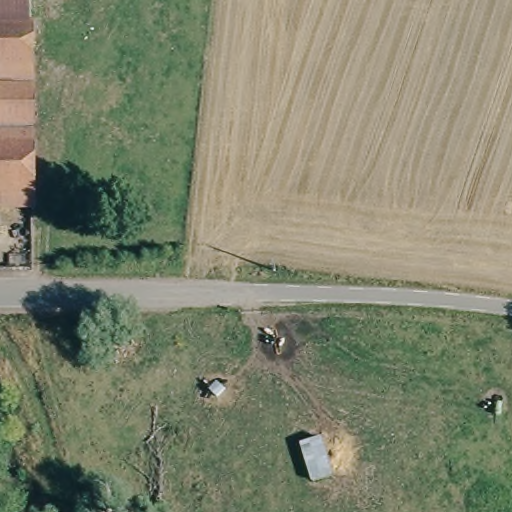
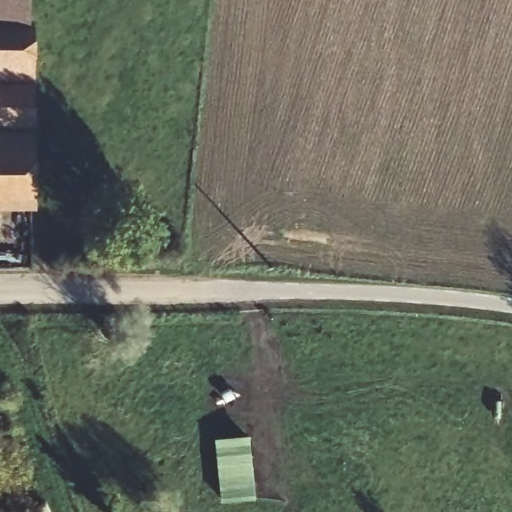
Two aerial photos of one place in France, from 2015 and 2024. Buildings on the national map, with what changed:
unchanged [(0,24),(0,0),(32,0),(32,24),(0,24)]
unchanged [(32,24),(32,41),(33,70),(0,69),(0,24),(32,24)]
unchanged [(33,70),(33,137),(33,139),(0,139),(0,69),(33,70)]
unchanged [(33,139),(33,197),(0,197),(0,139),(33,139)]
unchanged [(33,197),(34,209),(0,208),(0,197),(33,197)]
new [(216,442),(250,437),(260,500),(226,505),(216,442)]

